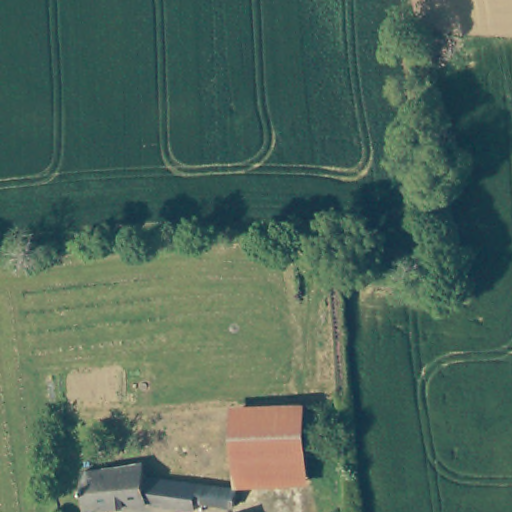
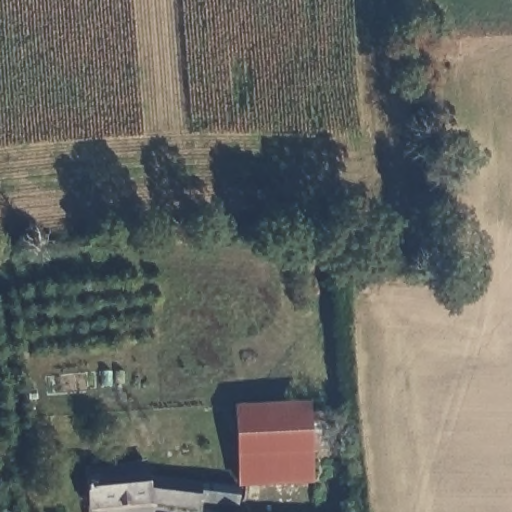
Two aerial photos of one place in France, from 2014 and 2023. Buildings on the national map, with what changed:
unchanged [(242,477),(240,417),(312,415),(315,476),(315,481),(242,483),(242,477)]
unchanged [(242,490),(241,507),(204,505),(203,512),(187,512),(155,510),(116,512),(96,512),(92,478),(155,470),(157,485),(204,487),(242,490)]

